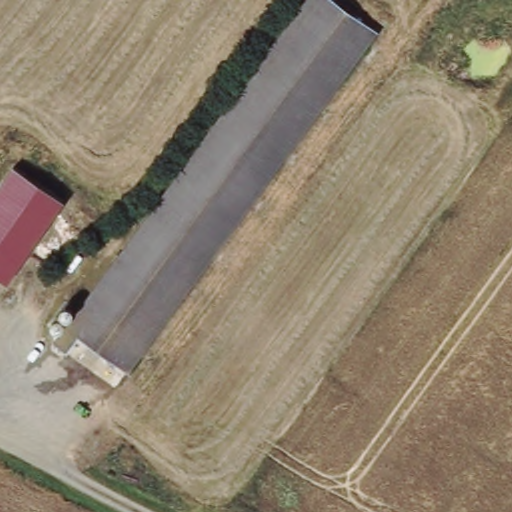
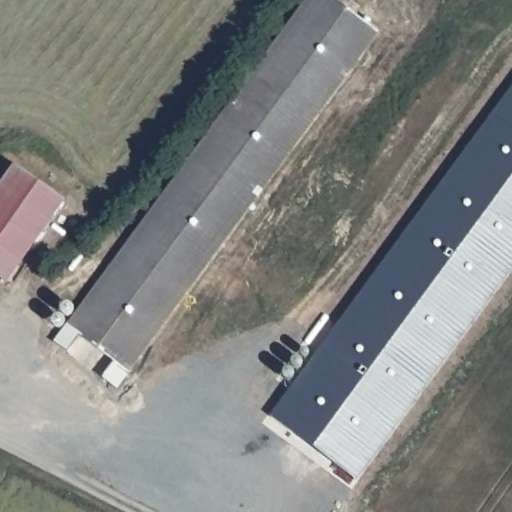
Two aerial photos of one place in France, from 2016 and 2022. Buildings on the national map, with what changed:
unchanged [(135,375),(87,342),(77,356),(61,345),(304,0),(334,0),(378,30),(135,375)]
new [(512,85),(512,266),(356,479),(270,417),(512,85)]
unchanged [(12,165),(64,199),(6,283),(0,278),(0,182),(12,165)]

